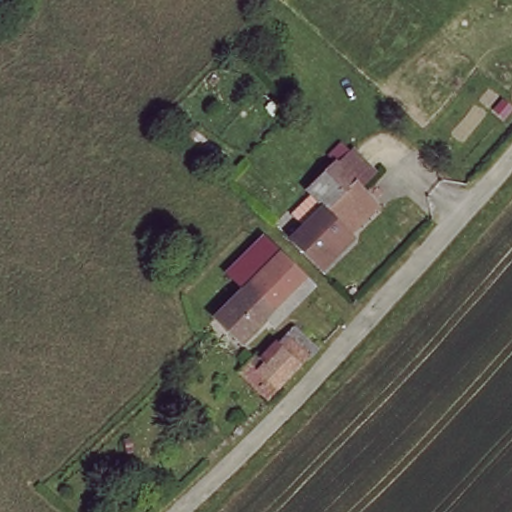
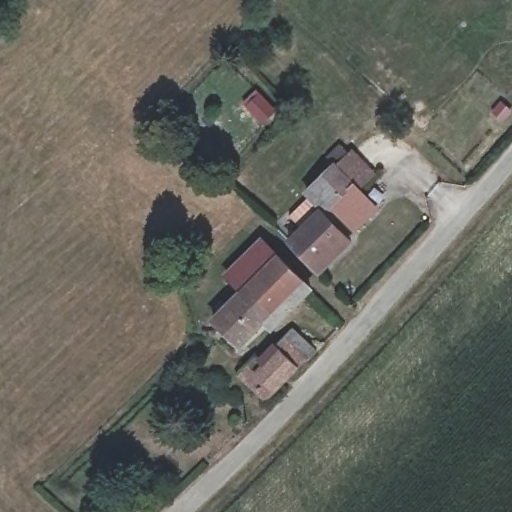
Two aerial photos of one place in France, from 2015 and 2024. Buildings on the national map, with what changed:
unchanged [(306,199),(336,169),(375,205),(368,213),(344,187),(320,213),(306,199)]
unchanged [(344,187),(368,213),(348,235),(353,240),(317,278),(287,246),(320,213),(344,187)]
unchanged [(274,331),(267,325),(239,355),(208,328),(240,295),(225,280),(258,245),(265,252),(302,288),(308,295),(274,331)]
unchanged [(265,365),(292,335),(313,355),(266,403),(237,376),(255,357),(265,365)]

